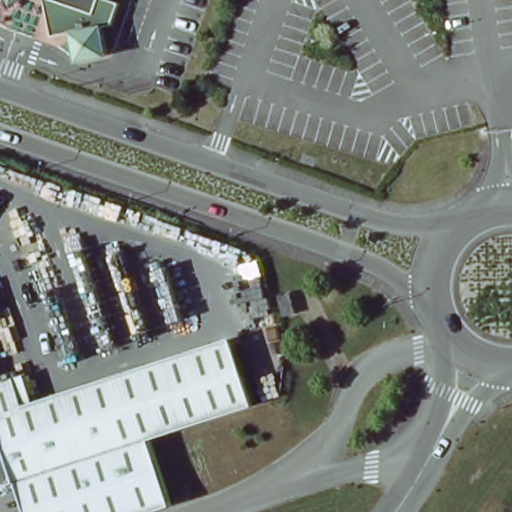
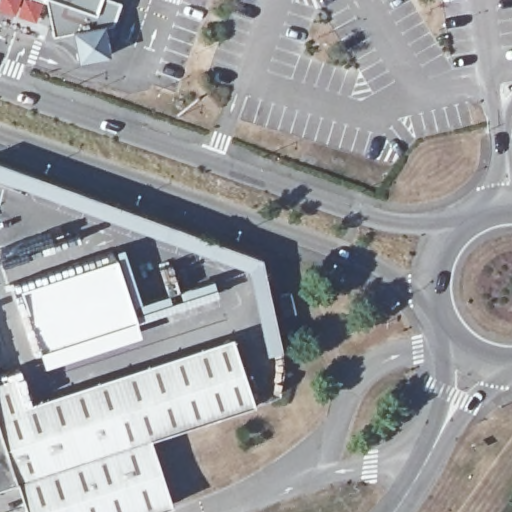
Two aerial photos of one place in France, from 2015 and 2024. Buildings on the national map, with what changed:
unchanged [(96,21),(102,50),(73,55),(67,27),(46,30),(28,24),(36,0),(114,0),(108,20),(96,21)]
new [(115,259),(141,335),(43,367),(21,289),(115,259)]
unchanged [(292,293),(299,313),(289,316),(282,296),(292,293)]
unchanged [(28,404),(202,348),(236,336),(258,405),(155,438),(176,505),(153,512),(31,512),(21,481),(0,488),(0,383),(20,377),(28,404)]

